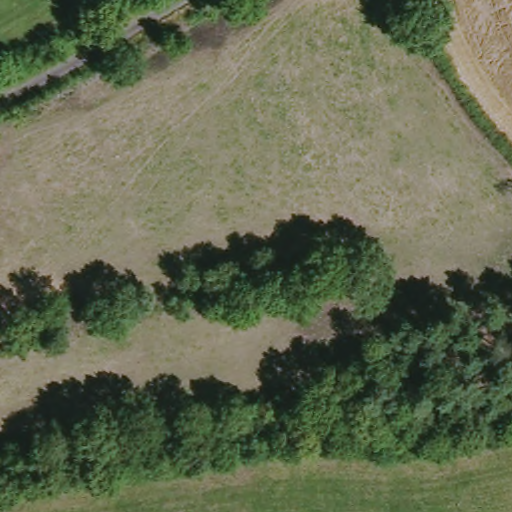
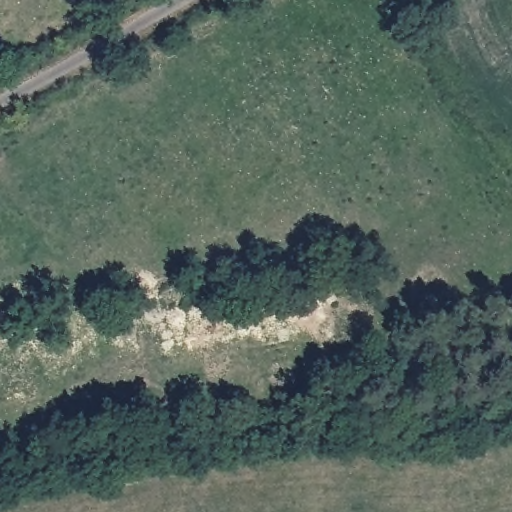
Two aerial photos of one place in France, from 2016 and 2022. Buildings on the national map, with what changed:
[]

